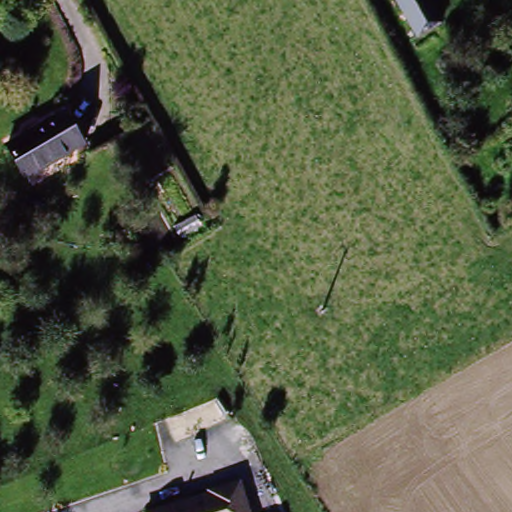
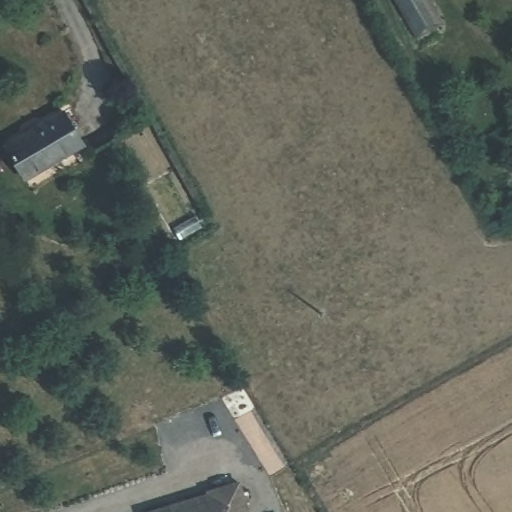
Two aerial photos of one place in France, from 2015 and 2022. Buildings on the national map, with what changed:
unchanged [(442,23),(415,39),(393,0),(429,0),(442,23)]
unchanged [(24,182),(2,146),(64,109),(86,145),(24,182)]
unchanged [(249,512),(150,512),(240,482),(249,512)]

